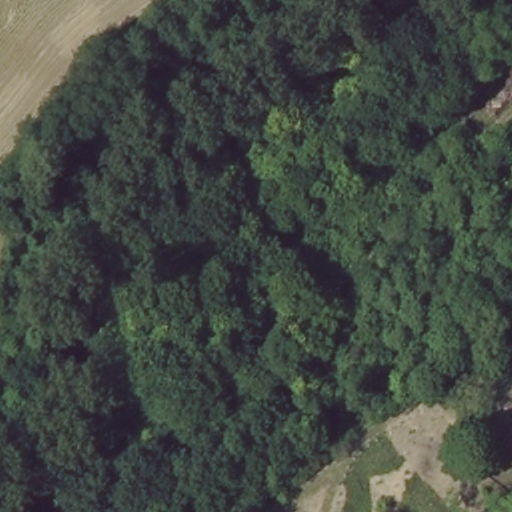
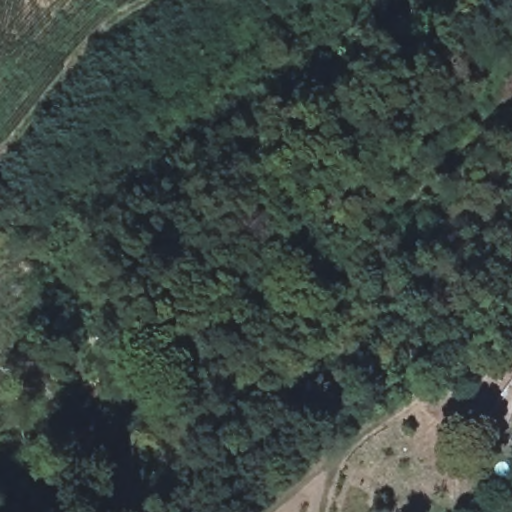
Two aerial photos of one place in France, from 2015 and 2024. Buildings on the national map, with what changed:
unchanged [(510,419),(512,415),(512,420),(510,419)]

